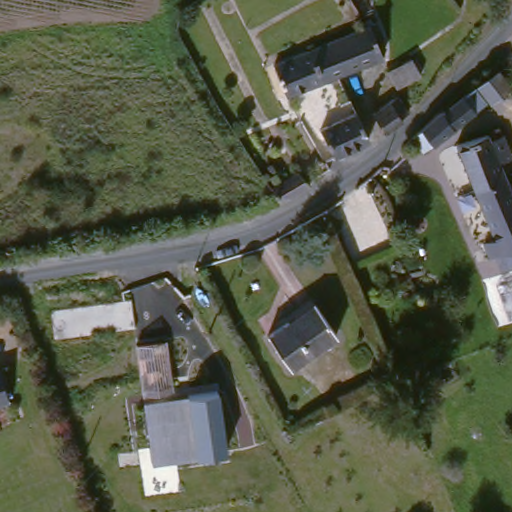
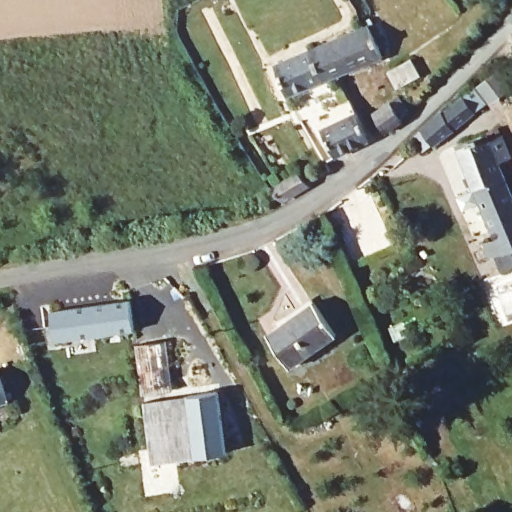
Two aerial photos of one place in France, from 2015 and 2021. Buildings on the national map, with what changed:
unchanged [(344,71),(329,77),(315,45),(369,22),(375,20),(388,52),(344,71)]
unchanged [(293,93),(279,60),(315,45),(329,77),(293,93)]
unchanged [(394,71),(417,59),(426,76),(403,89),(394,71)]
unchanged [(442,111),(445,114),(476,89),(488,104),(434,146),(433,145),(424,151),(413,138),(442,111)]
unchanged [(378,114),(404,96),(415,113),(407,118),(409,121),(390,133),(378,114)]
unchanged [(341,153),(327,125),(362,108),(375,136),(341,153)]
unchanged [(479,186),(462,146),(493,136),(495,141),(507,136),(512,147),(512,158),(504,161),(509,174),(479,186)]
unchanged [(316,181),(288,197),(276,183),(303,168),(314,179),(316,181)]
unchanged [(508,256),(507,254),(495,258),(490,245),(501,240),(479,186),(509,174),(512,181),(512,254),(508,256)]
new [(132,297),(135,329),(55,339),(51,309),(132,297)]
unchanged [(290,318),(292,320),(320,299),(342,330),(295,363),(272,330),(290,318)]
unchanged [(168,340),(174,393),(143,397),(137,344),(168,340)]
unchanged [(14,397),(0,401),(0,365),(3,364),(14,397)]
unchanged [(144,403),(219,391),(228,454),(153,464),(144,403)]

